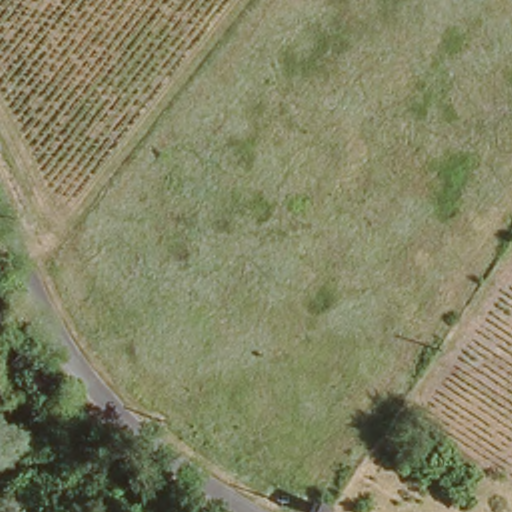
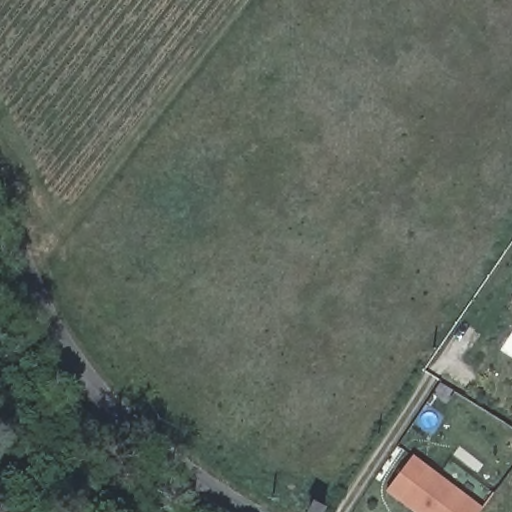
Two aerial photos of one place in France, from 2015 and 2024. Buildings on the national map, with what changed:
new [(511,302),(512,301),(512,303),(511,302)]
new [(482,507),(479,512),(414,512),(386,491),(413,455),(482,507)]

